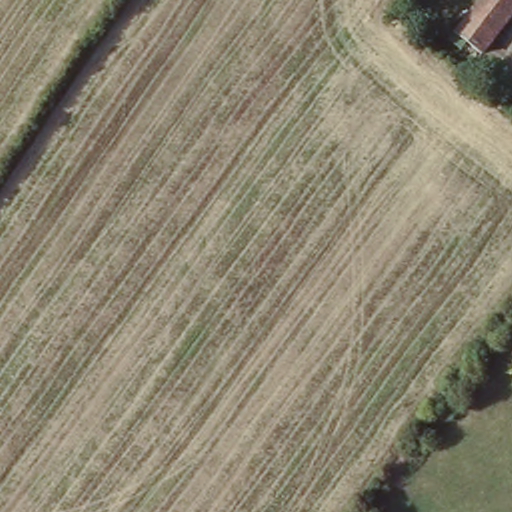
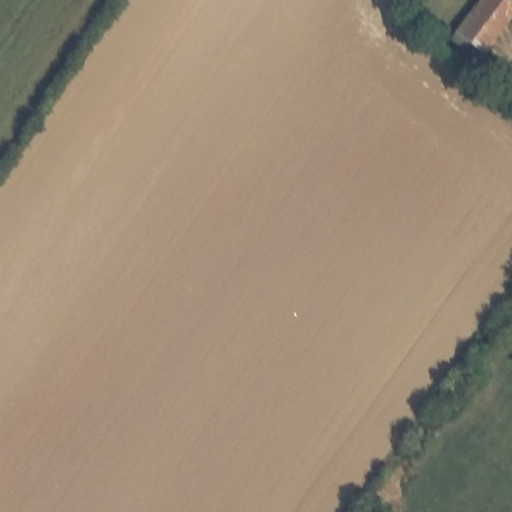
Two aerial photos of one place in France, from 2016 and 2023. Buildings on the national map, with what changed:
unchanged [(456,30),(477,0),(512,0),(512,13),(484,50),(456,30)]

